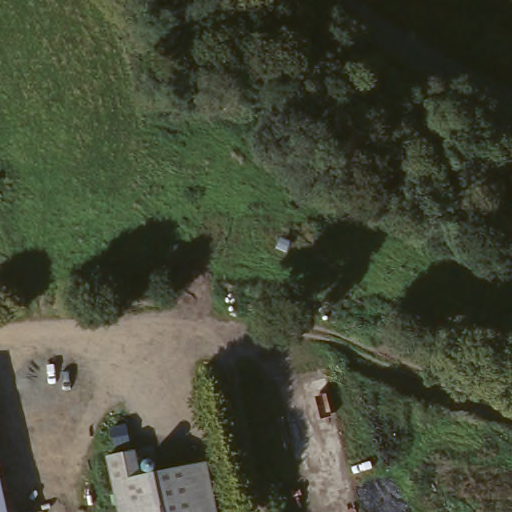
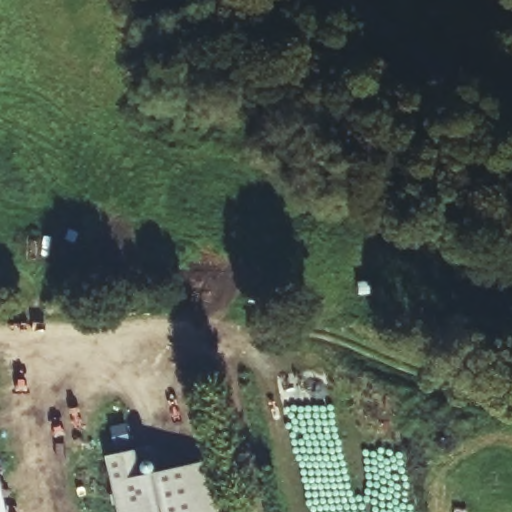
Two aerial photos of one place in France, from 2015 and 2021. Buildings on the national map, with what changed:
unchanged [(107,456),(137,450),(145,473),(206,461),(217,512),(119,512),(107,456)]
unchanged [(0,478),(8,512),(0,512),(0,478)]

